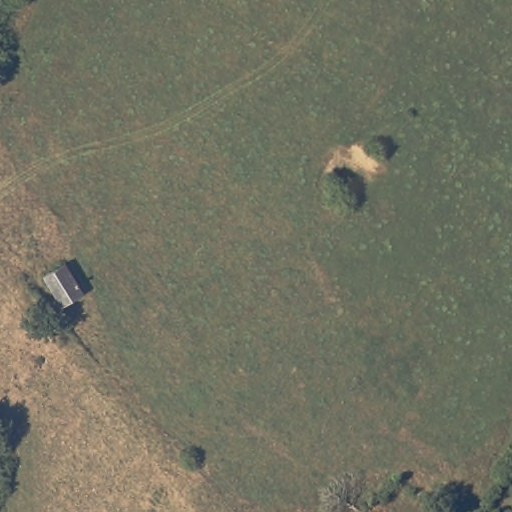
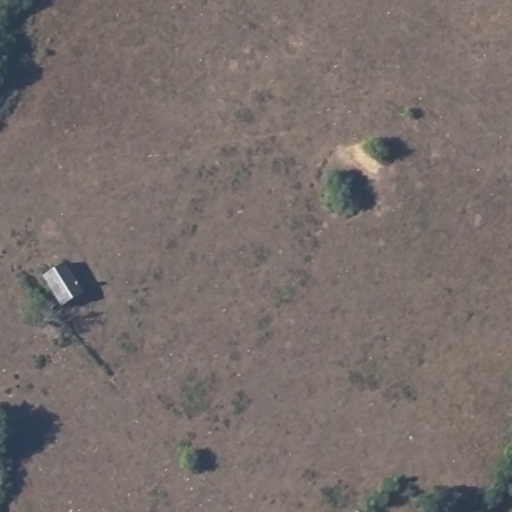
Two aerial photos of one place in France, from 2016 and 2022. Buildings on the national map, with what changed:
unchanged [(63,260),(83,288),(64,302),(44,274),(63,260)]

